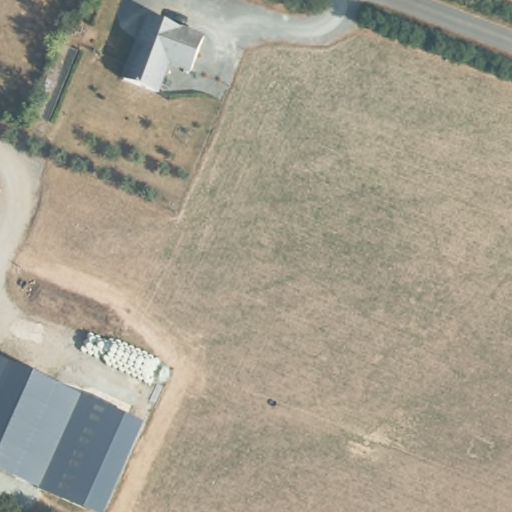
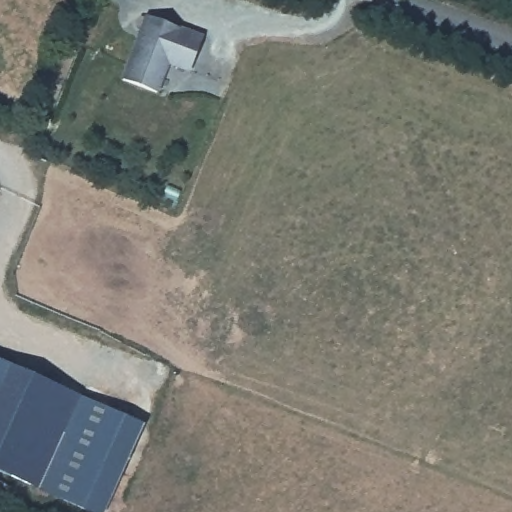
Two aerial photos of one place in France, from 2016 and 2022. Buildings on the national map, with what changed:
unchanged [(192,68),(167,57),(161,70),(164,70),(157,86),(123,72),(151,9),(207,34),(192,68)]
unchanged [(0,387),(0,360),(9,365),(0,387)]
unchanged [(82,397),(41,489),(0,471),(0,387),(9,365),(82,397)]
unchanged [(105,512),(89,512),(41,489),(82,397),(145,425),(105,512)]

